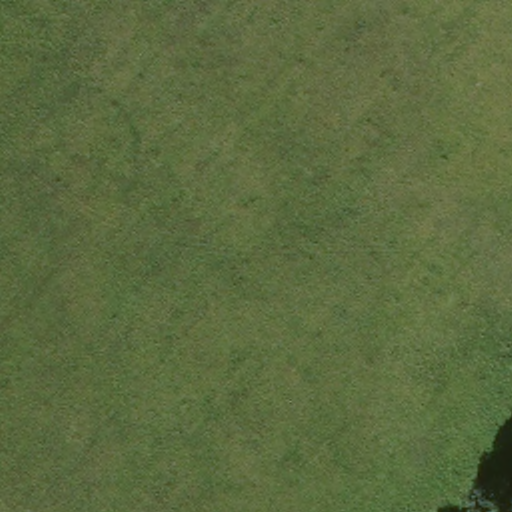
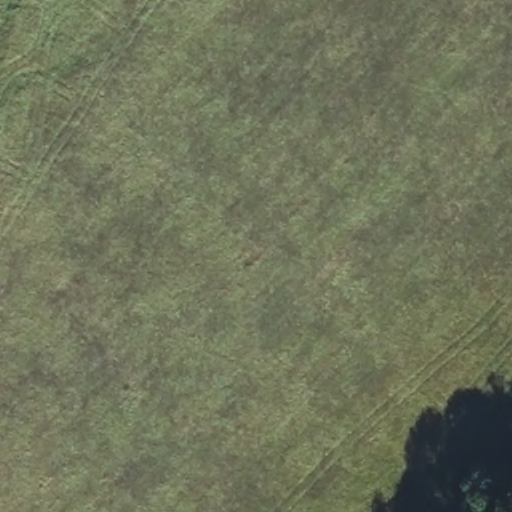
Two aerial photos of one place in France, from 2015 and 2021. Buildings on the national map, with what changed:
[]

